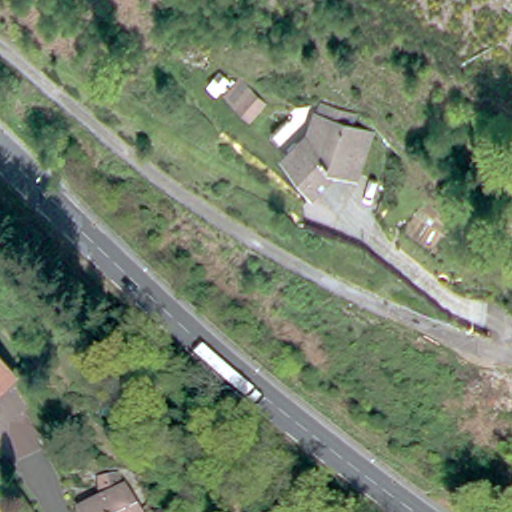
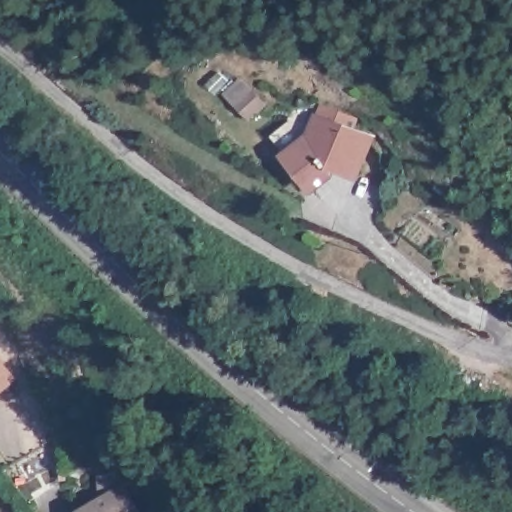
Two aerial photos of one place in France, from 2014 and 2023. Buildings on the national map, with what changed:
unchanged [(315,139),(323,122),(375,136),(368,172),(342,164),(337,166),(342,169),(324,185),(277,141),(297,121),(315,139)]
unchanged [(0,387),(0,358),(15,375),(0,387)]
unchanged [(92,507),(101,503),(132,488),(144,512),(95,512),(92,507)]

